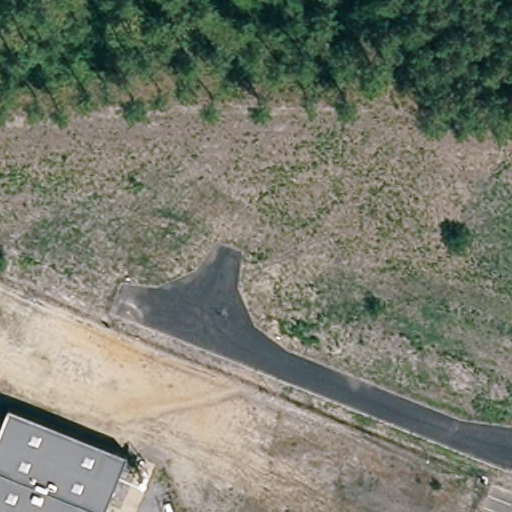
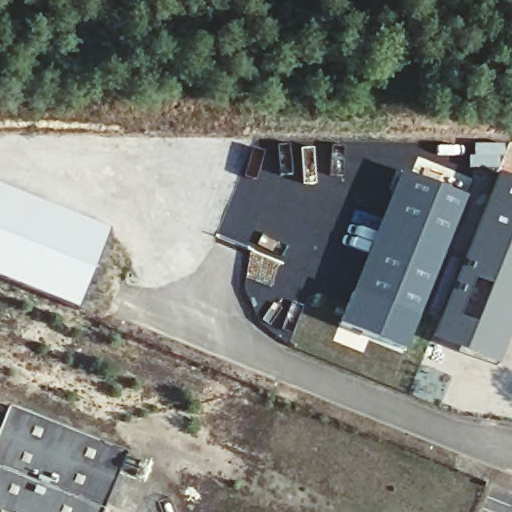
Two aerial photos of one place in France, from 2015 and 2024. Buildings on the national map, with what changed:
new [(466,195),(472,170),(468,169),(468,154),(472,154),(473,141),(503,143),(497,172),(512,178),(512,335),(500,367),(428,340),(457,262),(444,256),(466,195)]
new [(400,170),(466,195),(444,256),(407,352),(338,325),(400,170)]
new [(0,184),(109,228),(76,308),(0,278),(0,184)]
unchanged [(101,512),(0,512),(0,422),(6,405),(125,451),(101,512)]

